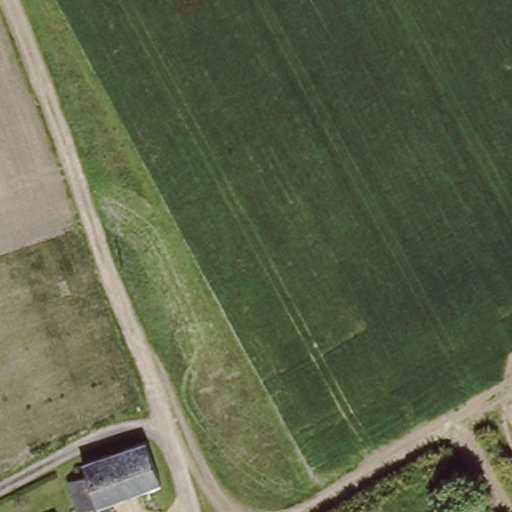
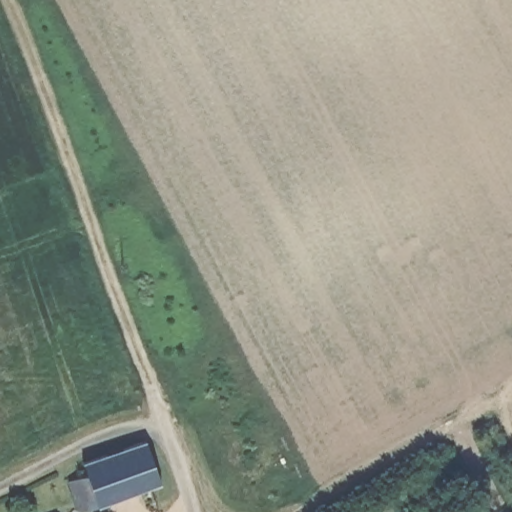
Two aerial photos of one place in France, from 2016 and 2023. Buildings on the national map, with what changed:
unchanged [(77,512),(67,483),(83,478),(78,464),(141,442),(156,484),(146,488),(77,512)]

